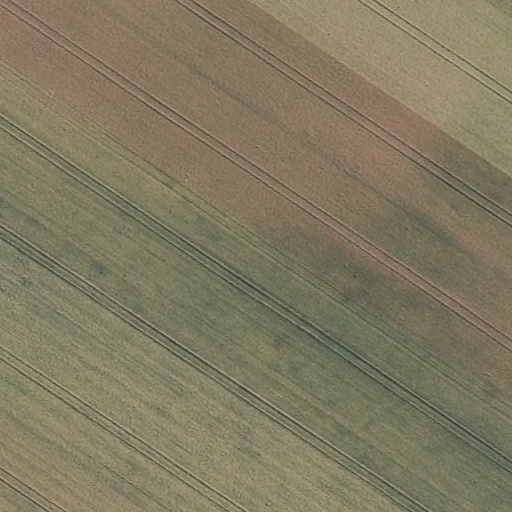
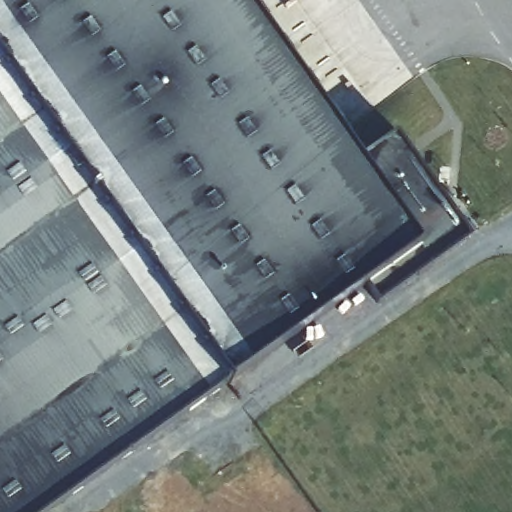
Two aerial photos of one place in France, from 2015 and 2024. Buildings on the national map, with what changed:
new [(472,236),(378,303),(365,286),(228,383),(0,65),(0,0),(239,0),(352,162),(396,131),(472,236)]
new [(228,383),(48,512),(0,512),(0,65),(84,183),(228,383)]

